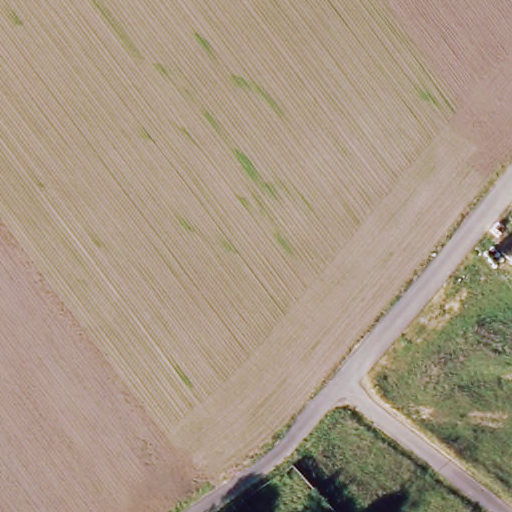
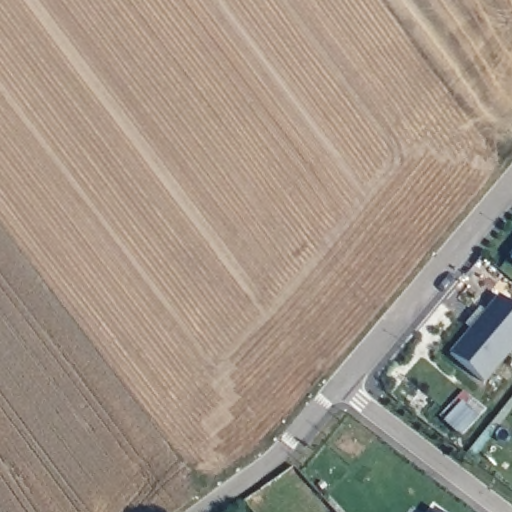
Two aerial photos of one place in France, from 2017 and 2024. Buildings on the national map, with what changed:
unchanged [(509,255),(512,251),(512,258),(509,255)]
new [(502,296),(512,305),(512,352),(486,382),(452,355),(502,296)]
new [(467,326),(482,308),(487,313),(473,330),(467,326)]
new [(441,512),(436,512),(438,509),(441,512)]

